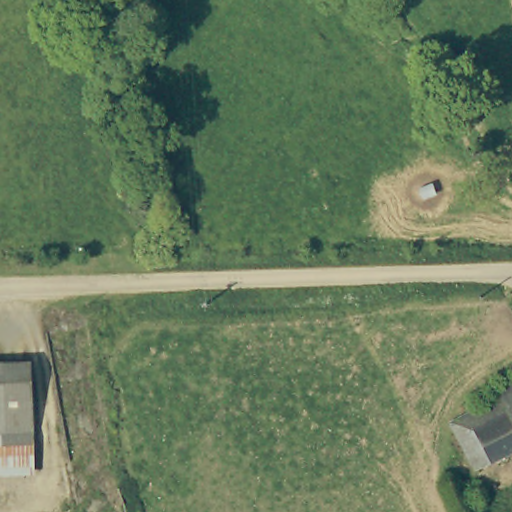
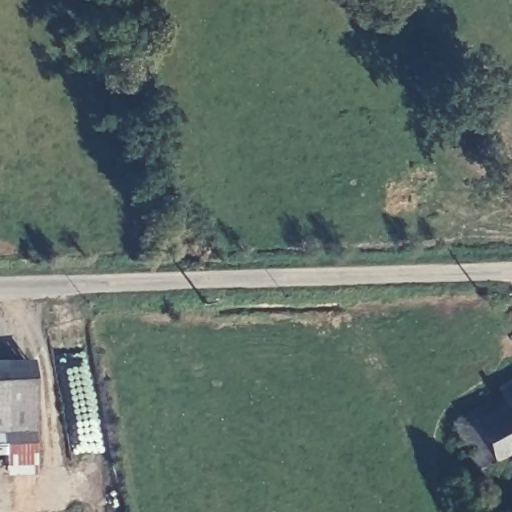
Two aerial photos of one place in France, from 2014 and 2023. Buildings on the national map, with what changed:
unchanged [(27,361),(31,432),(0,433),(0,363),(27,361)]
unchanged [(448,421),(497,395),(494,388),(512,379),(512,449),(486,463),(493,476),(481,483),(473,469),(448,421)]
unchanged [(31,432),(32,461),(0,463),(0,433),(31,432)]

